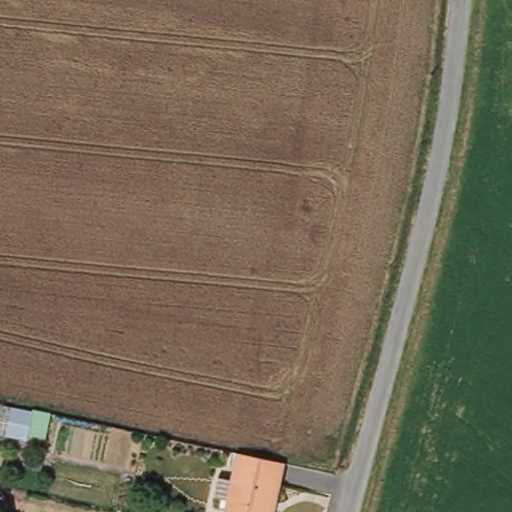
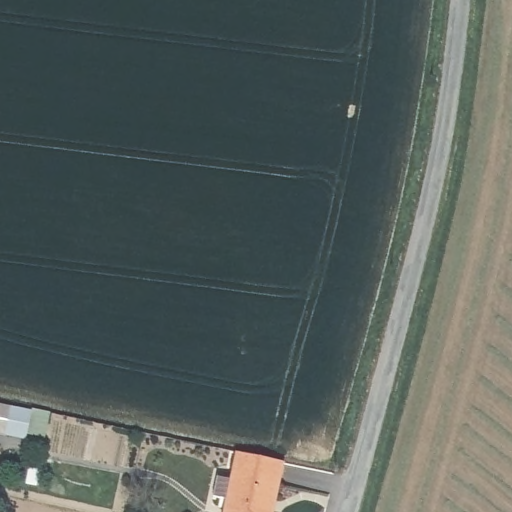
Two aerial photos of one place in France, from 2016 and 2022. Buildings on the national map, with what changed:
unchanged [(25,405),(23,435),(0,433),(0,403),(25,405)]
unchanged [(234,453),(285,458),(279,512),(227,512),(229,501),(214,500),(217,477),(231,480),(234,453)]

